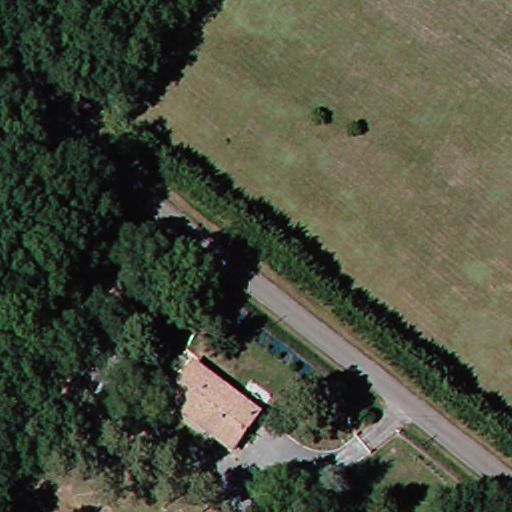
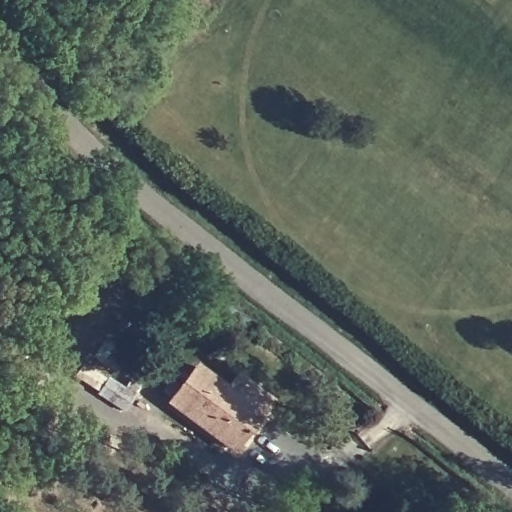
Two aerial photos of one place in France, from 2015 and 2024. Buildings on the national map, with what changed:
unchanged [(229,453),(165,403),(192,370),(255,420),(229,453)]

